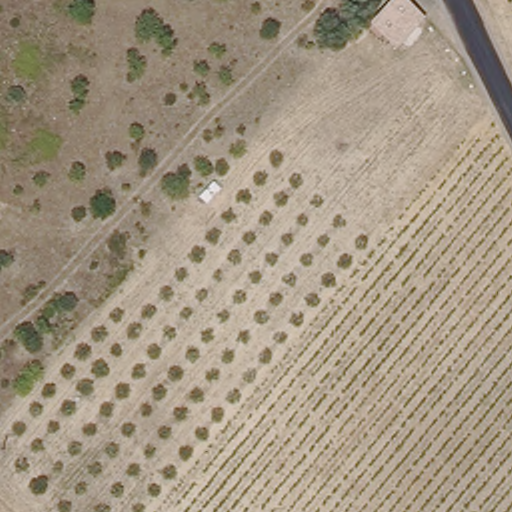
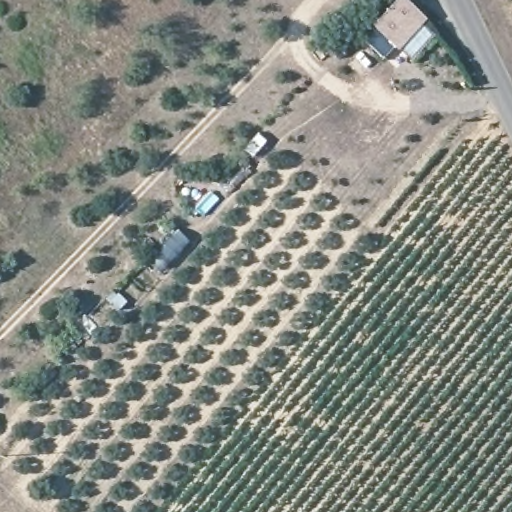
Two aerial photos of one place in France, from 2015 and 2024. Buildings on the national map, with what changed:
unchanged [(421,19),(396,47),(375,28),(398,1),(421,19)]

